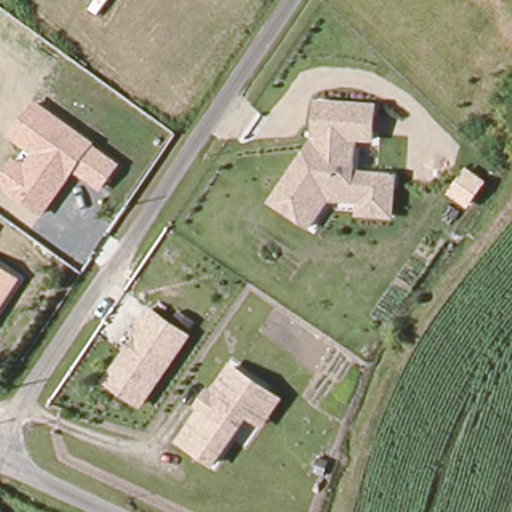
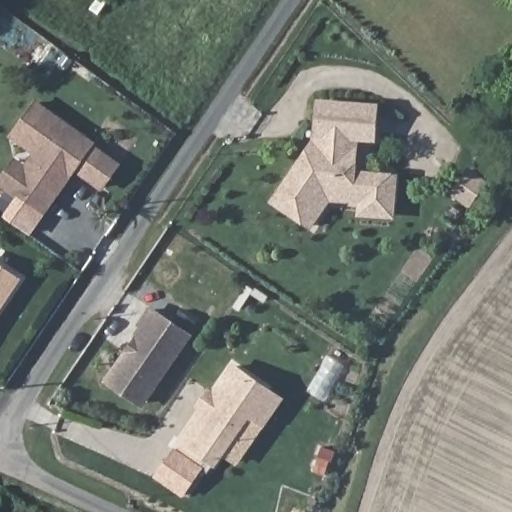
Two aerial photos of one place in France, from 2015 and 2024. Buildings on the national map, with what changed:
unchanged [(74,173),(69,181),(43,216),(0,186),(0,177),(13,157),(24,166),(33,153),(8,136),(35,99),(95,143),(121,164),(101,191),(74,173)]
unchanged [(278,191),(312,141),(316,141),(318,101),(376,106),(375,138),(357,137),(355,173),(381,174),(395,175),(393,214),(361,213),(363,199),(328,196),(310,224),(292,212),(273,200),(278,191)]
unchanged [(6,283),(7,290),(4,296),(4,301),(0,308),(0,274),(1,280),(6,283)]
unchanged [(189,335),(142,404),(108,382),(146,326),(143,324),(152,312),(189,335)]
unchanged [(183,441),(235,366),(266,388),(281,397),(265,422),(250,413),(217,462),(183,441)]
new [(173,450),(199,468),(181,495),(154,477),(173,450)]

